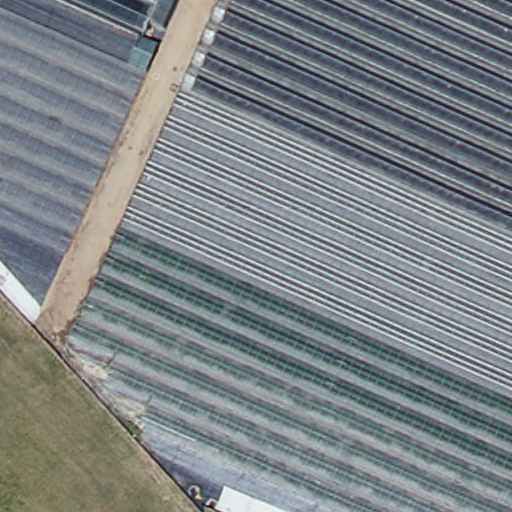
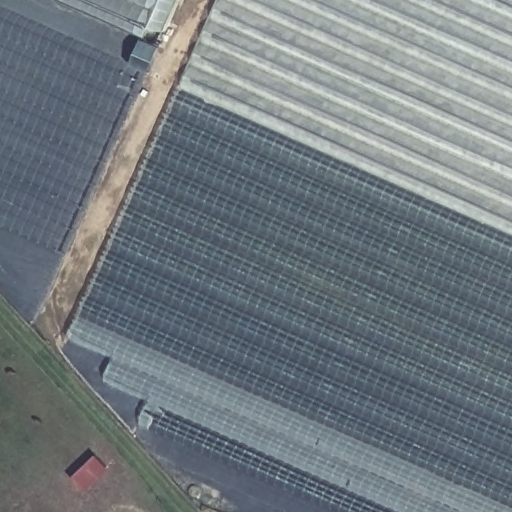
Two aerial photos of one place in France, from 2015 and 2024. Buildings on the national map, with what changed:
unchanged [(151,23),(146,37),(62,0),(178,0),(166,29),(151,23)]
unchanged [(152,400),(106,383),(116,356),(69,338),(218,0),(512,0),(512,512),(340,512),(141,425),(152,400)]
unchanged [(66,255),(0,224),(0,8),(148,73),(66,255)]

